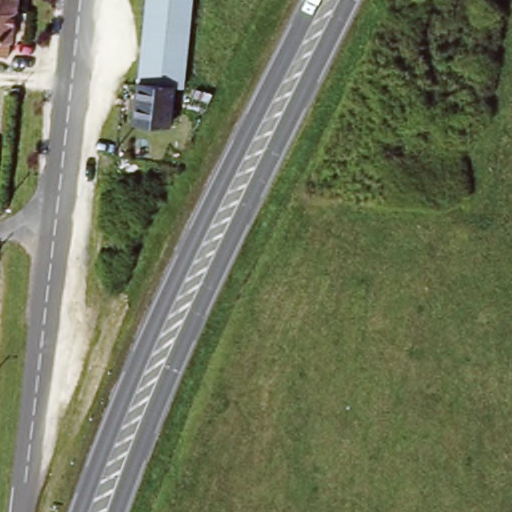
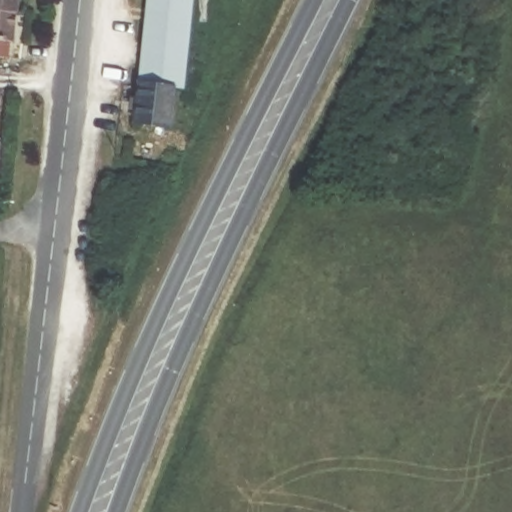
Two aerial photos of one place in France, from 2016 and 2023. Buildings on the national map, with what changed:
unchanged [(0,9),(0,0),(23,0),(22,11),(0,9)]
unchanged [(193,0),(185,89),(176,88),(172,127),(136,124),(148,0),(193,0)]
unchanged [(22,11),(20,41),(17,41),(15,59),(0,58),(0,9),(22,11)]

